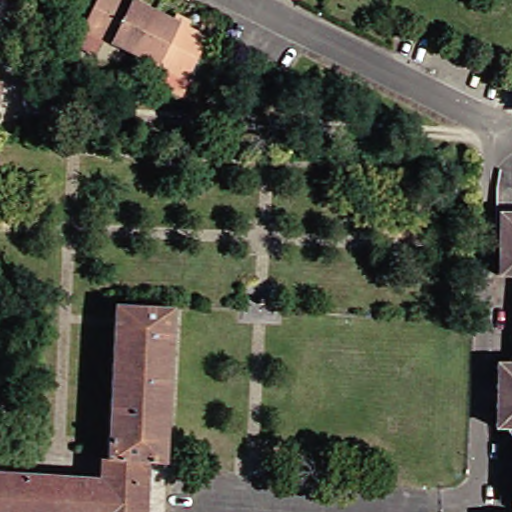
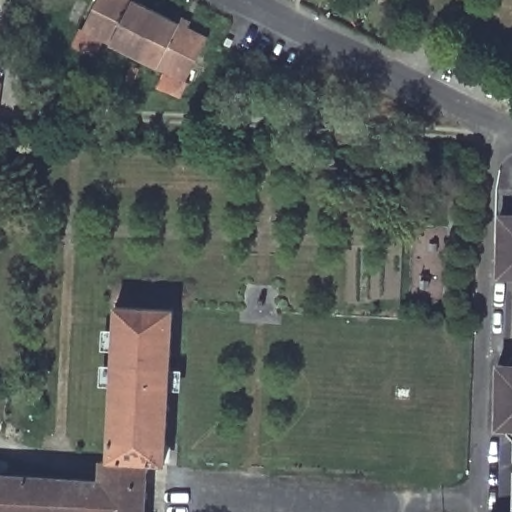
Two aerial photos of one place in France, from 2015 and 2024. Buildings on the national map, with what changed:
unchanged [(169,24),(172,17),(187,25),(184,30),(203,40),(182,84),(184,85),(175,103),(151,91),(159,75),(99,45),(91,61),(67,49),(75,31),(78,32),(94,0),(136,0),(134,6),(169,24)]
unchanged [(496,215),(512,215),(512,246),(496,245),(496,215)]
unchanged [(495,274),(496,245),(512,246),(512,274),(495,274)]
unchanged [(109,305),(164,308),(155,466),(139,466),(137,512),(0,512),(0,476),(99,481),(109,305)]
unchanged [(512,363),(512,429),(492,427),(494,363),(512,363)]

